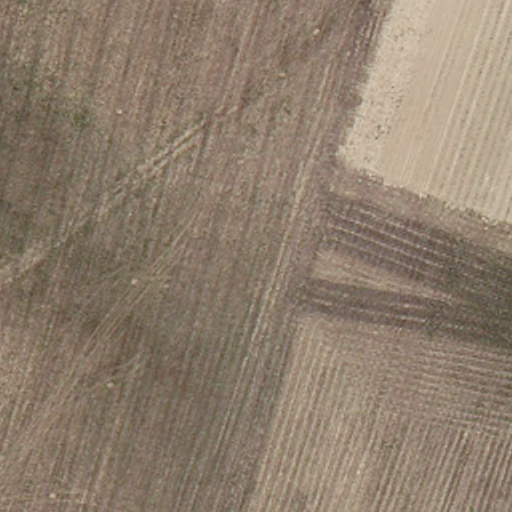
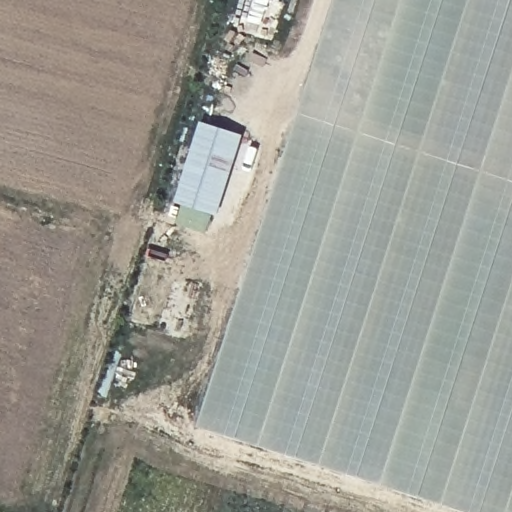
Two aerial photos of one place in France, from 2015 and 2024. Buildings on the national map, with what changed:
new [(470,512),(202,427),(338,0),(512,0),(512,512),(470,512)]
new [(202,122),(244,136),(217,215),(213,214),(206,233),(178,224),(184,204),(177,202),(202,122)]

